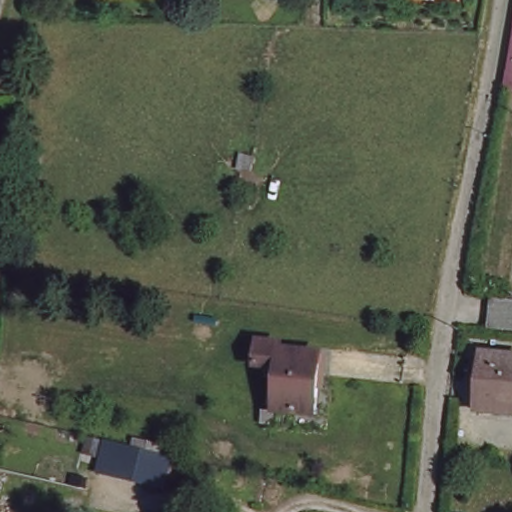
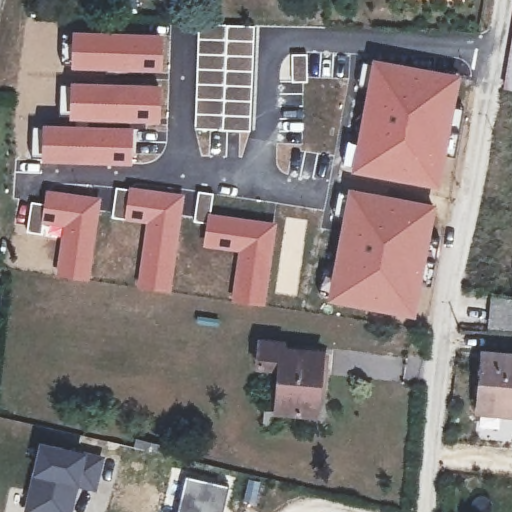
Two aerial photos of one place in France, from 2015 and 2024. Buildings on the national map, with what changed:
new [(72,29),(169,33),(169,46),(166,46),(165,71),(72,67),(72,29)]
unchanged [(504,87),(512,35),(512,89),(504,87)]
new [(290,52),(308,52),(307,81),(290,81),(290,52)]
new [(348,147),(352,148),(353,141),(356,141),(372,56),(461,72),(454,120),(441,188),(375,176),(342,168),(348,147)]
new [(69,90),(69,79),(164,83),(161,121),(94,119),(67,99),(69,90)]
new [(42,122),(132,125),(132,162),(41,161),(42,122)]
new [(115,186),(185,192),(172,292),(136,288),(145,222),(111,218),(115,186)]
new [(347,186),(438,203),(417,317),(327,300),(347,186)]
new [(30,200),(44,202),(46,189),(101,196),(91,280),(56,276),(62,228),(44,226),(43,234),(26,231),(30,200)]
new [(196,189),(215,192),(211,211),(277,221),(266,306),(231,301),(237,250),(202,246),(206,223),(192,221),(196,189)]
unchanged [(492,298),(512,300),(512,329),(490,327),(492,298)]
unchanged [(268,425),(269,409),(281,410),(285,367),(262,365),(265,341),(287,343),(286,349),(327,353),(322,414),(282,410),(281,426),(268,425)]
unchanged [(477,415),(481,386),(483,356),(488,356),(512,359),(512,419),(477,415)]
new [(106,456),(98,491),(81,487),(74,512),(24,512),(40,440),(106,456)]
unchanged [(143,449),(170,455),(169,463),(141,457),(143,449)]
demolished [(141,457),(169,463),(161,496),(105,483),(107,470),(112,450),(141,457)]
new [(230,485),(224,512),(177,512),(186,475),(230,485)]

